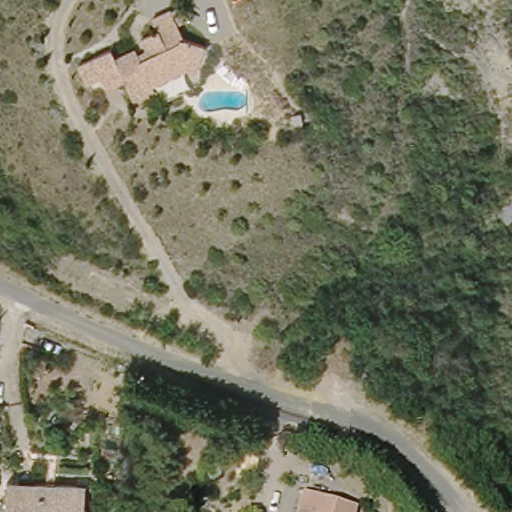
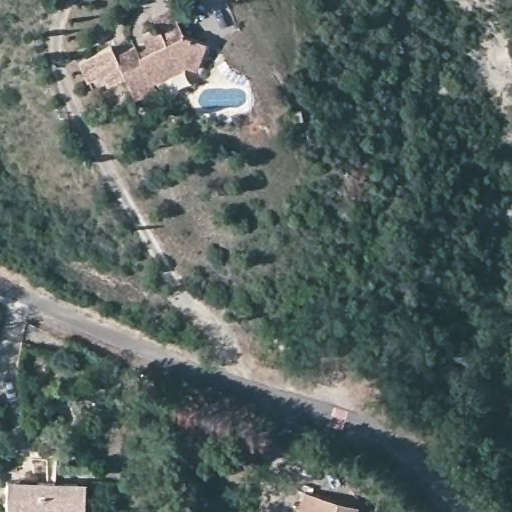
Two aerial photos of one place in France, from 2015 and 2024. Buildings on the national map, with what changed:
unchanged [(176,16),(186,31),(206,33),(203,64),(191,62),(158,84),(163,92),(148,103),(136,85),(120,95),(112,83),(96,94),(83,76),(111,58),(115,65),(137,51),(140,56),(153,48),(143,34),(156,26),(148,14),(169,0),(175,0),(185,10),(176,16)]
unchanged [(8,491),(10,474),(78,483),(89,484),(86,512),(6,512),(8,491)]
unchanged [(299,512),(306,489),(359,504),(356,512),(299,512)]

